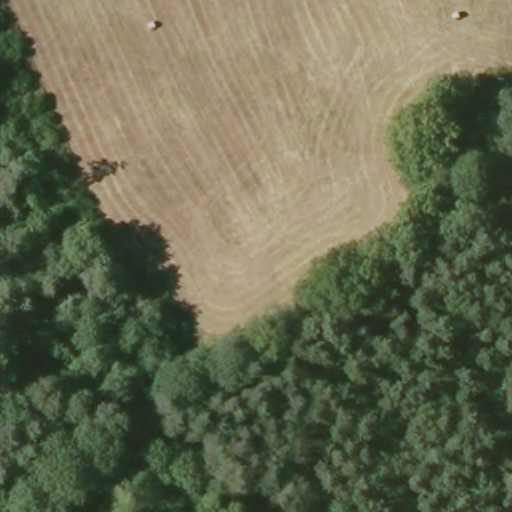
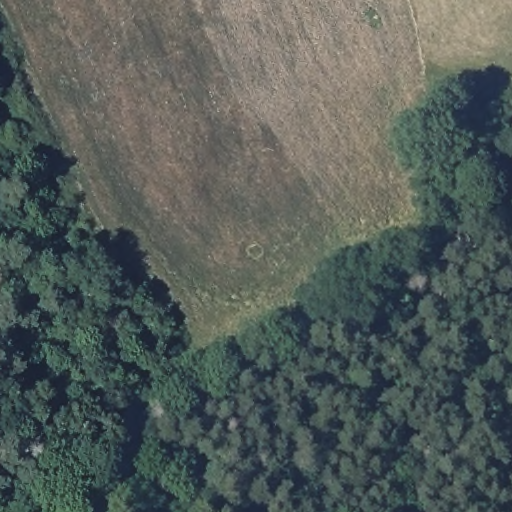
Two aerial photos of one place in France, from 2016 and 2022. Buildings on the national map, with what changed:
[]

